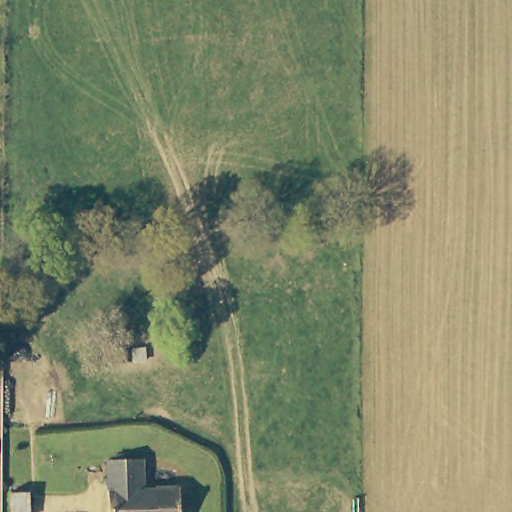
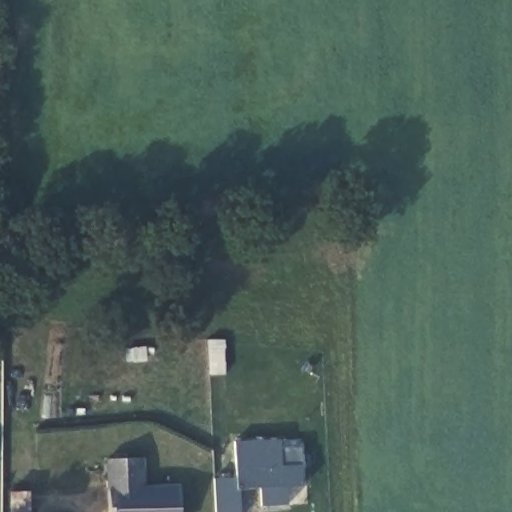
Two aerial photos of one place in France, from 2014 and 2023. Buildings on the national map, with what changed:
new [(285,488),(287,505),(261,507),(260,489),(237,490),(241,512),(215,512),(214,480),(237,479),(235,441),(279,440),(281,465),(303,465),(303,486),(285,488)]
unchanged [(174,485),(175,512),(105,512),(105,460),(139,458),(141,489),(174,485)]
unchanged [(4,512),(4,500),(23,500),(22,512),(4,512)]

